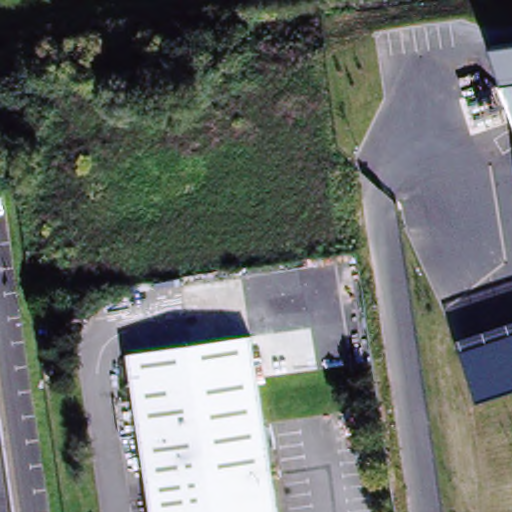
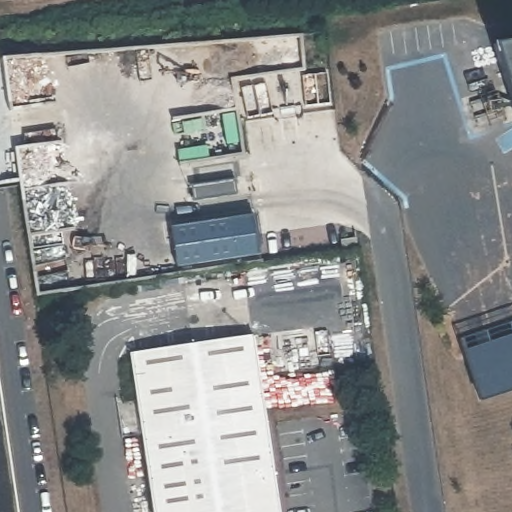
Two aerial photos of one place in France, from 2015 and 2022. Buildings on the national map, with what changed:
unchanged [(512,109),(503,81),(493,45),(512,42),(512,109)]
new [(256,255),(176,266),(170,228),(251,216),(256,255)]
unchanged [(461,350),(512,333),(512,390),(477,402),(461,350)]
unchanged [(252,335),(279,512),(151,512),(128,355),(252,335)]
unchanged [(16,512),(0,512),(0,405),(16,512)]

